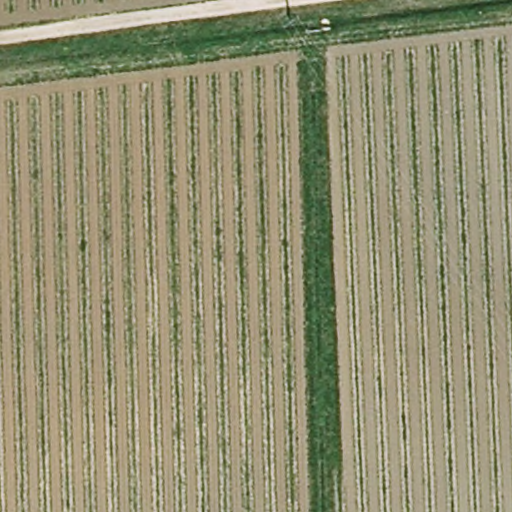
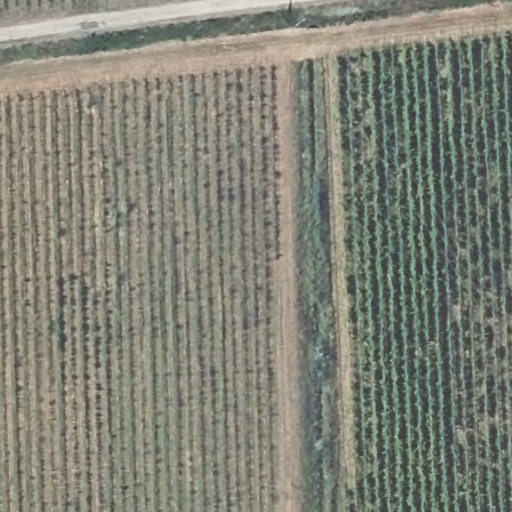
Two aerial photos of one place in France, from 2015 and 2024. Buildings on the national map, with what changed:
[]

